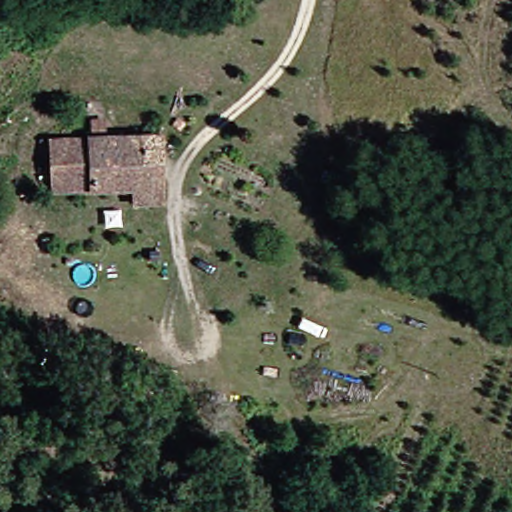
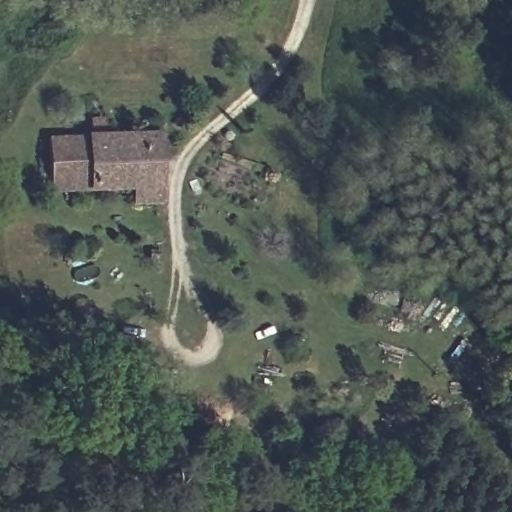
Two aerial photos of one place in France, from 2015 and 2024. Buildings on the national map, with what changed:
unchanged [(118,204),(118,189),(26,188),(28,138),(73,138),(74,119),(92,119),(90,140),(124,141),(125,121),(152,122),(150,203),(118,204)]

